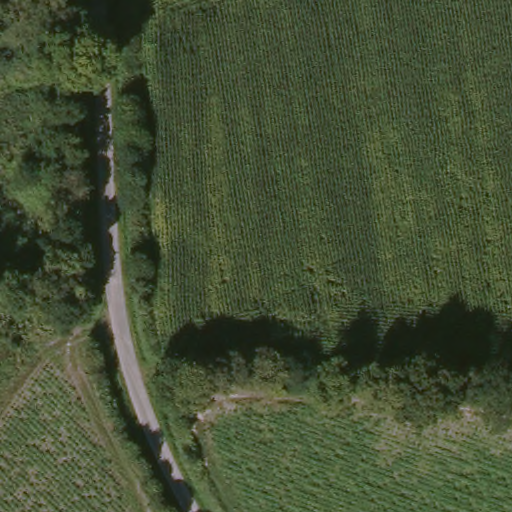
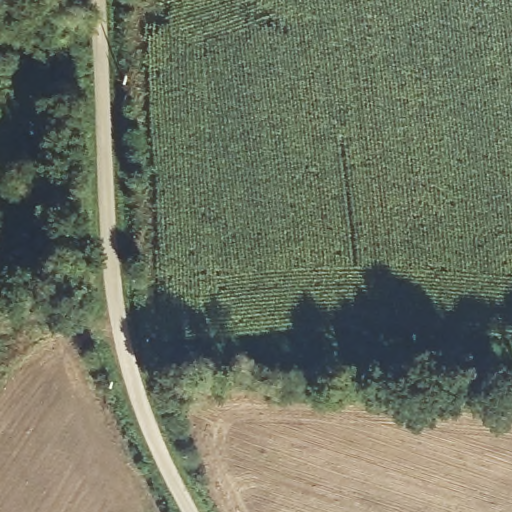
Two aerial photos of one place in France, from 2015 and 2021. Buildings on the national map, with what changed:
[]

